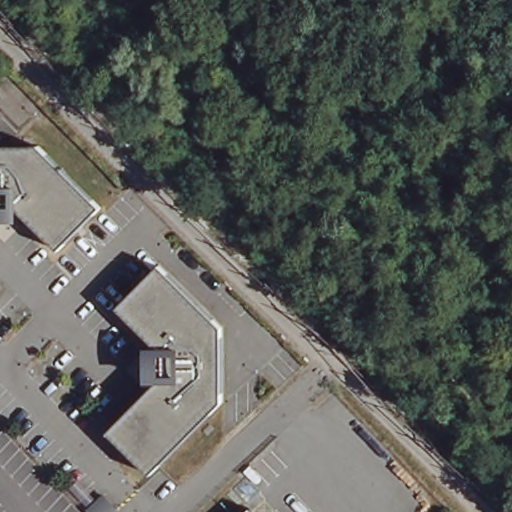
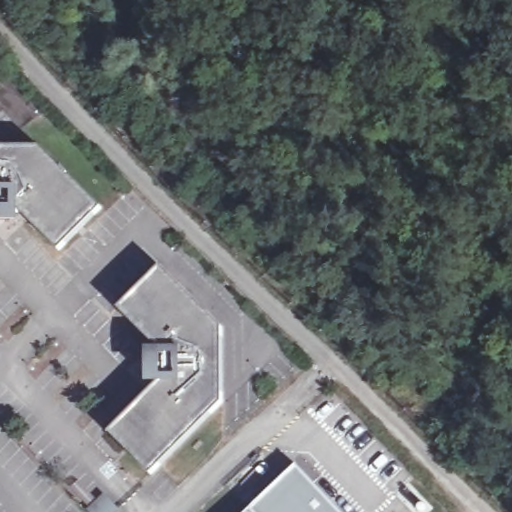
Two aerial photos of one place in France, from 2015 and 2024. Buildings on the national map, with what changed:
unchanged [(17,212),(14,213),(14,221),(0,222),(0,145),(39,144),(102,206),(59,249),(19,209),(17,212)]
unchanged [(155,383),(152,381),(155,378),(145,378),(145,357),(155,357),(155,354),(157,351),(117,311),(160,269),(222,331),(222,406),(152,478),(109,435),(155,383)]
new [(297,465),(341,512),(252,512),(251,511),(297,465)]
unchanged [(252,512),(250,512),(251,511),(252,512)]

